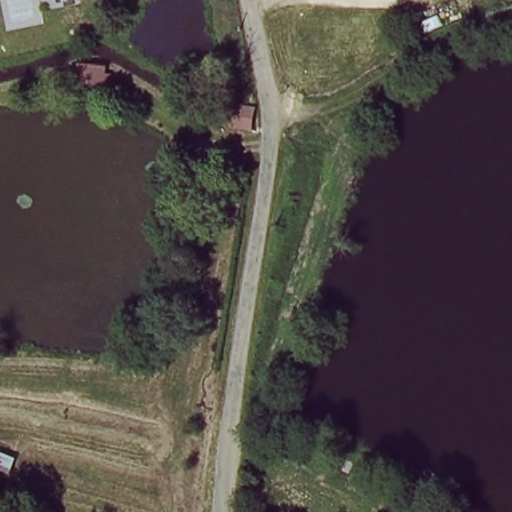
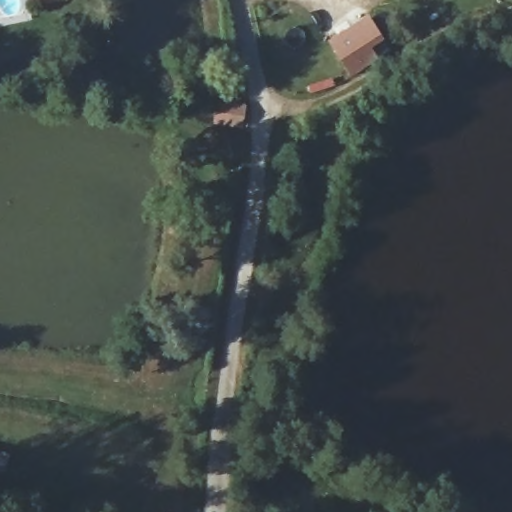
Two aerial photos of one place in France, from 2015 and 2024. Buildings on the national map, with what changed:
new [(367,15),(382,40),(371,47),(378,59),(351,76),(328,40),(367,15)]
unchanged [(60,82),(61,72),(67,74),(68,66),(95,69),(94,77),(101,77),(100,85),(60,82)]
unchanged [(218,123),(218,114),(219,102),(243,106),(243,127),(218,123)]

